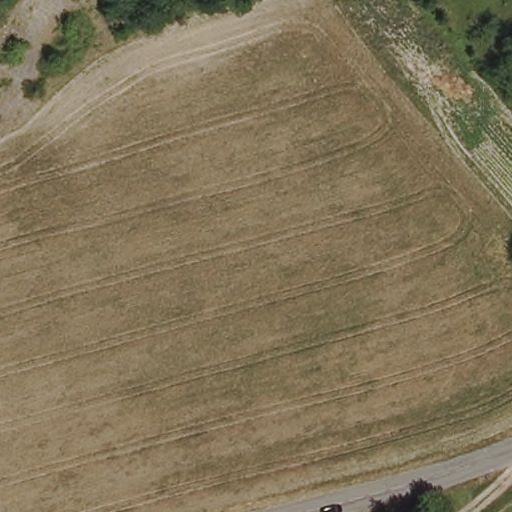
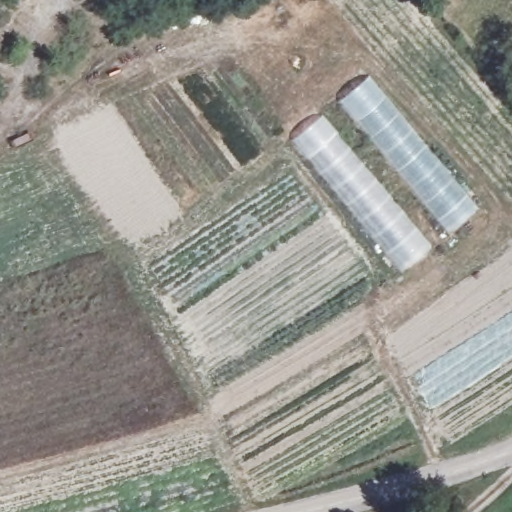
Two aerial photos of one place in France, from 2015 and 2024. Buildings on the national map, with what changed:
new [(294,140),(323,116),(369,78),(480,212),(431,251),(405,273),(294,140)]

